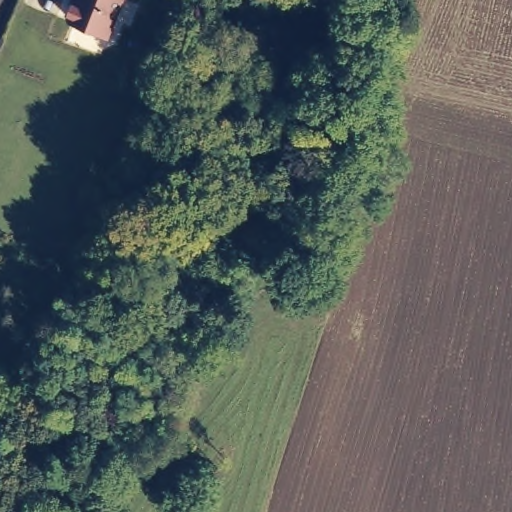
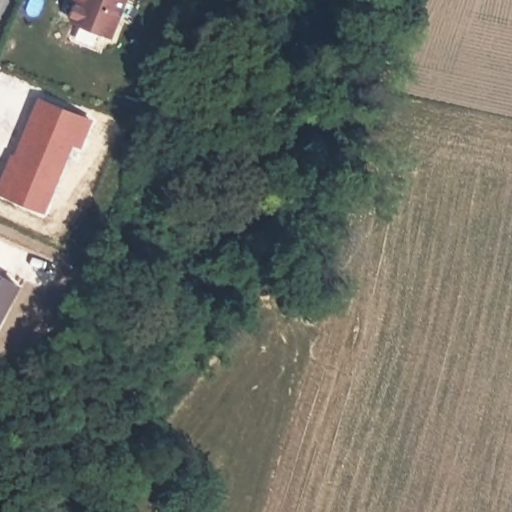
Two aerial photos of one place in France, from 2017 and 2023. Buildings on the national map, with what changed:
unchanged [(64,21),(73,0),(123,0),(108,37),(64,21)]
new [(10,162),(38,97),(88,117),(78,145),(68,141),(40,209),(0,192),(0,177),(6,161),(10,162)]
new [(0,310),(0,276),(14,284),(0,310)]

